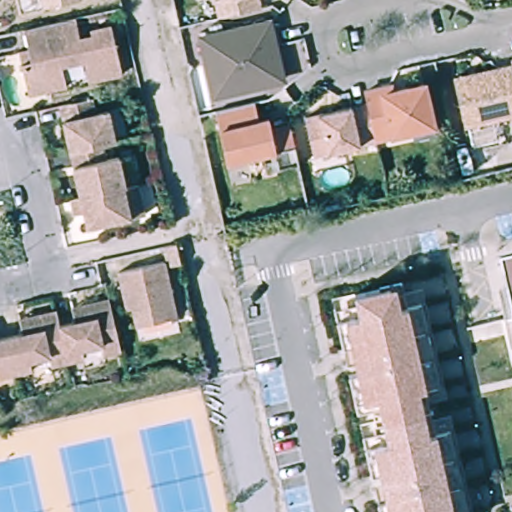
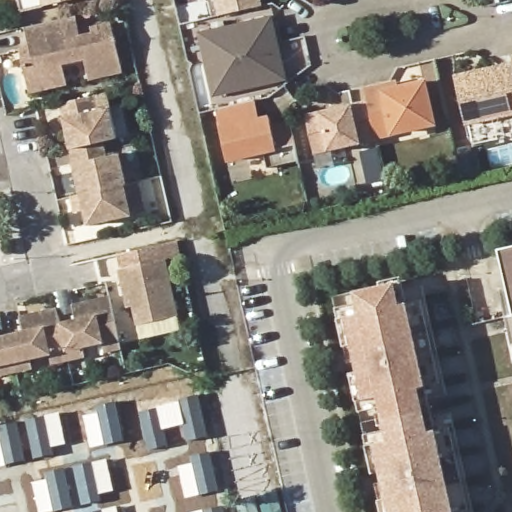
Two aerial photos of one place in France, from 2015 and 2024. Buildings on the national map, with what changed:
unchanged [(85,1),(49,10),(47,0),(84,0),(85,1)]
unchanged [(219,1),(219,0),(265,0),(267,9),(216,20),(212,3),(219,1)]
unchanged [(35,51),(29,29),(34,27),(52,24),(80,17),(84,39),(96,37),(94,29),(114,24),(124,72),(92,80),(88,59),(64,64),(68,85),(32,94),(26,64),(24,53),(35,51)]
unchanged [(204,35),(272,20),(285,79),(217,94),(204,35)]
unchanged [(512,62),(512,72),(511,67),(510,62),(512,62)]
unchanged [(463,130),(454,89),(452,81),(482,75),(511,67),(512,72),(512,119),(463,130)]
unchanged [(414,134),(379,141),(375,126),(369,100),(368,95),(386,91),(401,87),(402,92),(428,87),(434,116),(437,129),(414,134)]
unchanged [(66,104),(95,97),(98,113),(111,110),(117,140),(105,142),(76,149),(66,104)]
unchanged [(375,126),(379,141),(363,145),(328,152),(314,155),(305,115),(318,111),(352,105),(369,100),(375,126)]
unchanged [(251,102),(257,101),(261,120),(272,119),(274,128),(294,124),(302,162),(269,170),(265,154),(229,161),(218,109),(239,105),(251,102)]
unchanged [(76,149),(105,142),(109,160),(121,157),(127,186),(86,195),(76,149)]
unchanged [(87,211),(78,214),(75,197),(86,195),(127,186),(142,183),(149,213),(97,224),(91,226),(87,211)]
unchanged [(512,246),(512,310),(498,250),(512,246)]
unchanged [(129,300),(122,271),(168,261),(181,317),(140,327),(136,308),(131,310),(129,300)]
unchanged [(447,395),(422,402),(426,422),(451,414),(472,512),(380,512),(378,500),(385,498),(380,473),(373,475),(366,445),(374,444),(387,441),(378,397),(364,400),(355,401),(349,373),(357,372),(351,347),(345,348),(337,320),(346,318),(358,315),(353,292),(396,283),(422,285),(447,395)]
unchanged [(107,355),(104,345),(88,350),(89,359),(72,362),(64,328),(81,325),(78,310),(113,302),(124,350),(107,355)]
unchanged [(28,336),(24,320),(61,313),(64,328),(72,362),(56,366),(54,357),(34,362),(35,371),(20,374),(12,340),(28,336)]
unchanged [(504,316),(512,315),(512,346),(510,346),(504,316)]
unchanged [(9,324),(12,340),(20,374),(3,378),(1,369),(0,369),(0,326),(9,324)]

